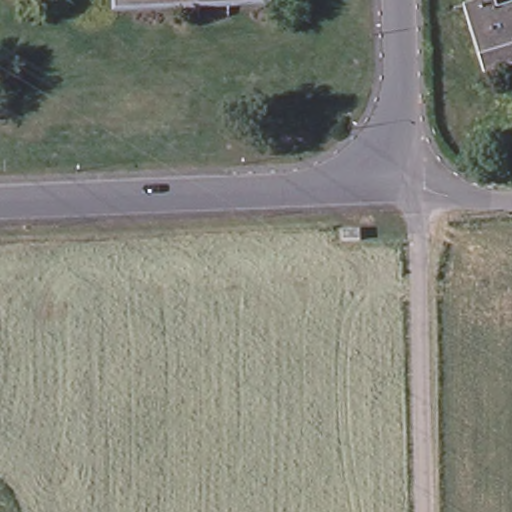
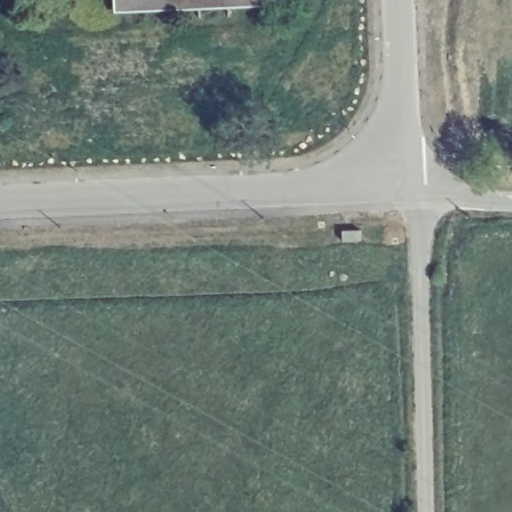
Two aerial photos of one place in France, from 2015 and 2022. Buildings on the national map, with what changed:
unchanged [(269,4),(116,12),(116,0),(269,0),(269,4)]
demolished [(473,0),(491,0),(494,10),(512,3),(512,67),(484,76),(461,8),(474,4),(473,0)]

